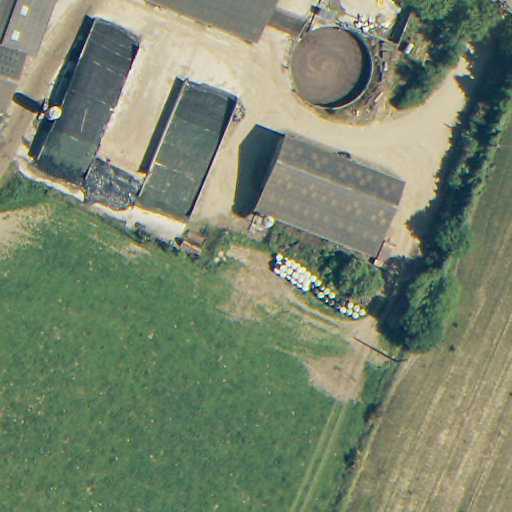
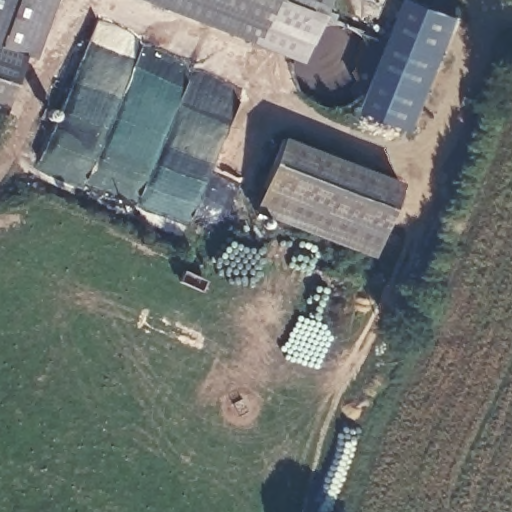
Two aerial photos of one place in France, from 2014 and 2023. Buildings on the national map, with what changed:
unchanged [(28,49),(0,40),(0,0),(44,0),(28,49)]
unchanged [(256,38),(159,0),(272,0),(256,38)]
new [(272,0),(325,0),(303,55),(256,38),(272,0)]
new [(370,110),(415,0),(419,0),(466,18),(419,130),(370,110)]
unchanged [(0,105),(0,40),(28,49),(8,108),(0,105)]
unchanged [(398,183),(369,252),(252,207),(281,136),(398,183)]

